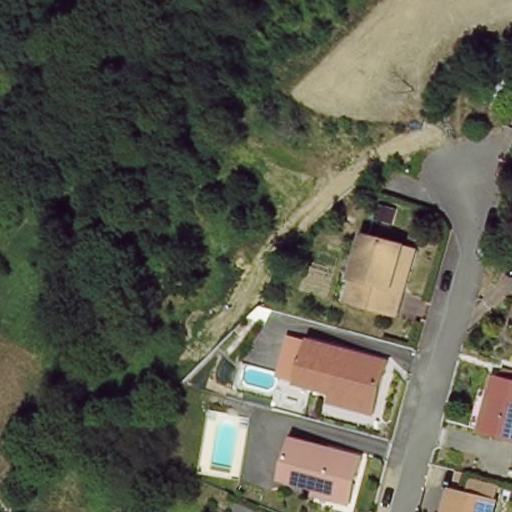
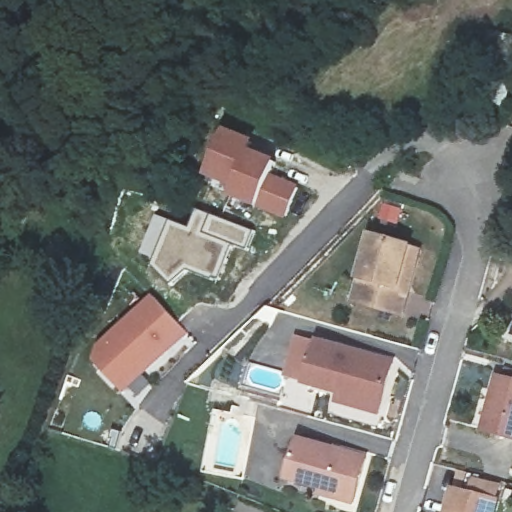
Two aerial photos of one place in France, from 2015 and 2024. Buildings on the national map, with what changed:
new [(492,30),(512,36),(512,73),(499,106),(484,101),(494,69),(481,65),(492,30)]
new [(248,146),(243,157),(269,168),(267,176),(296,187),(283,221),(225,199),(228,191),(197,179),(214,134),(248,146)]
new [(199,210),(255,230),(248,251),(232,246),(191,228),(199,210)]
new [(232,246),(218,282),(190,273),(174,287),(154,266),(157,261),(144,256),(159,215),(175,222),(191,228),(232,246)]
unchanged [(414,292),(410,315),(364,306),(377,237),(413,245),(424,248),(419,270),(408,268),(404,290),(414,292)]
new [(153,296),(188,334),(124,395),(90,356),(153,296)]
unchanged [(326,397),(328,390),(299,381),(310,341),(380,361),(368,402),(366,409),(326,397)]
unchanged [(512,384),(512,440),(485,432),(499,381),(512,384)]
unchanged [(317,497),(318,489),(287,480),(299,436),(368,453),(356,498),(355,506),(317,497)]
unchanged [(499,512),(451,512),(457,490),(502,501),(499,512)]

